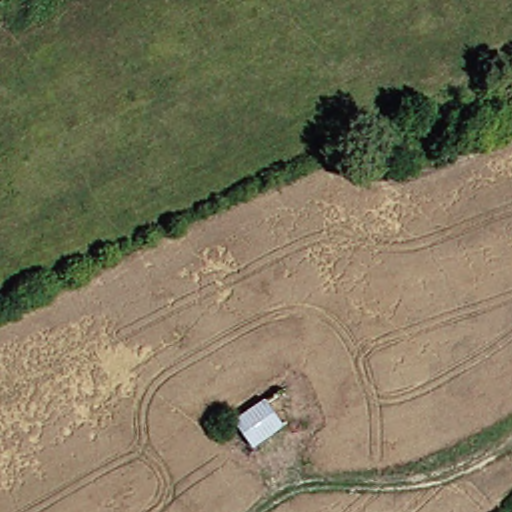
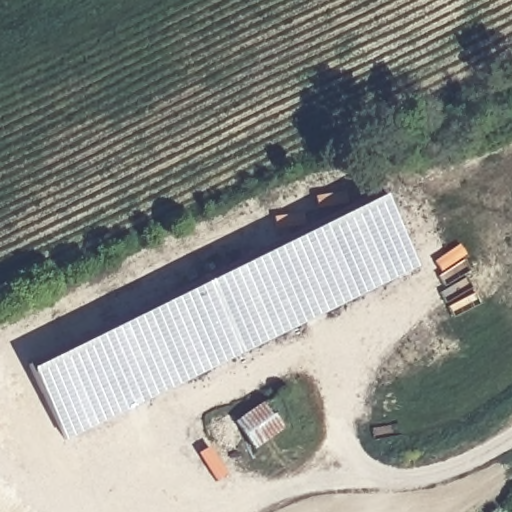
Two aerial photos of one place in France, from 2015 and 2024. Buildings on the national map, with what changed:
new [(424,266),(70,437),(40,367),(392,196),(424,266)]
unchanged [(292,425),(258,450),(240,421),(270,398),(292,425)]

